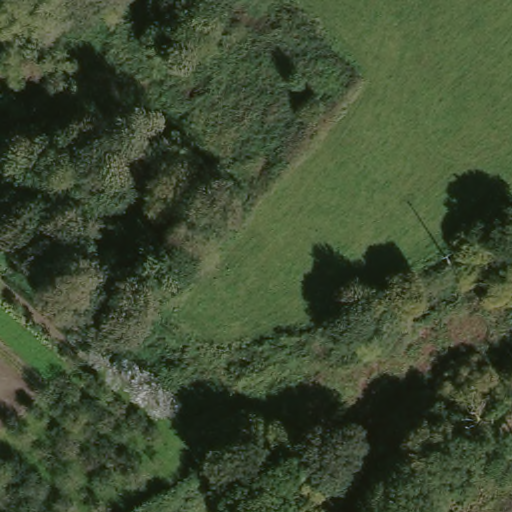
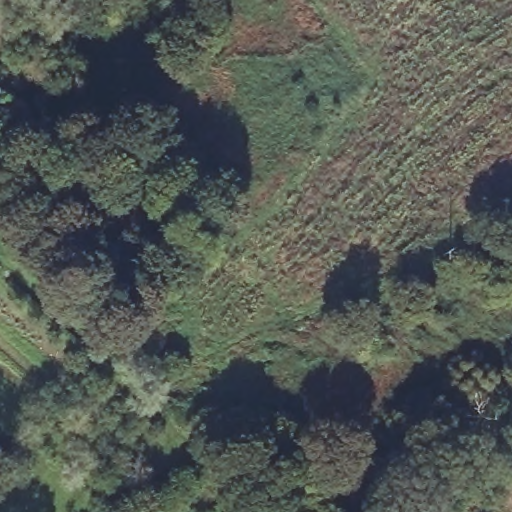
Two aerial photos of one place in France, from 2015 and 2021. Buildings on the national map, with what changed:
unchanged [(54,90),(36,111),(16,132),(0,117),(0,99),(11,87),(31,67),(54,90)]
unchanged [(104,130),(144,167),(126,187),(86,151),(104,130)]
unchanged [(28,158),(66,192),(33,232),(13,215),(31,196),(11,178),(28,158)]
unchanged [(98,230),(135,267),(101,300),(64,262),(98,230)]

